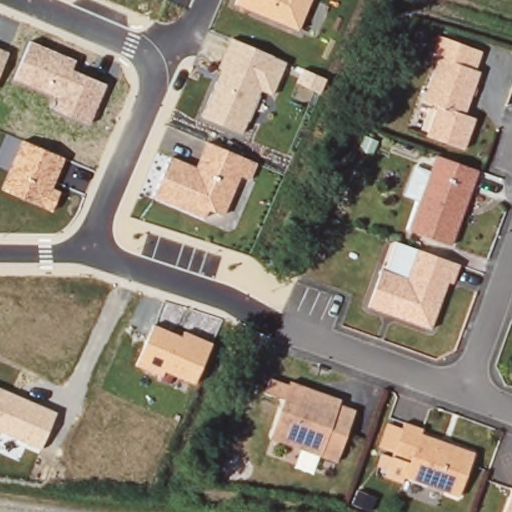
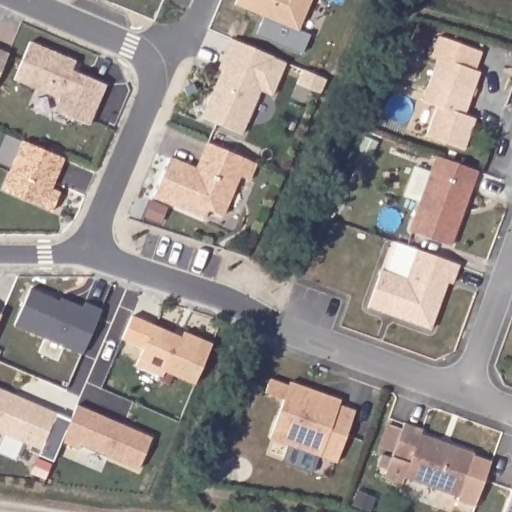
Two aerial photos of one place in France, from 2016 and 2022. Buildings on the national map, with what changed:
unchanged [(237,4),(238,0),(313,0),(300,30),(237,4)]
unchanged [(90,125),(54,109),(59,99),(14,80),(30,40),(75,60),(71,70),(107,85),(90,125)]
unchanged [(232,40),(287,60),(273,96),(260,91),(244,132),(202,117),(232,40)]
unchanged [(438,64),(432,61),(438,41),(482,56),(476,75),(480,77),(465,120),(476,124),(464,155),(427,140),(437,111),(423,106),(438,64)]
unchanged [(8,54),(0,75),(0,50),(8,54)]
unchanged [(22,137),(67,156),(53,188),(60,191),(52,211),(1,189),(22,137)]
unchanged [(170,156),(197,166),(208,142),(256,162),(247,189),(238,186),(227,216),(209,210),(205,219),(153,197),(170,156)]
unchanged [(471,173),(471,174),(471,175),(472,175),(472,176),(473,176),(474,176),(475,175),(476,175),(477,175),(450,251),(409,236),(437,160),(471,173)]
unchanged [(368,311),(382,275),(407,284),(417,255),(459,270),(452,288),(447,286),(431,333),(393,320),(384,317),(368,311)]
new [(15,324),(30,287),(59,300),(61,296),(83,306),(85,301),(102,308),(82,353),(15,324)]
new [(2,312),(0,316),(0,312),(2,312)]
unchanged [(195,384),(164,371),(161,377),(135,365),(153,325),(181,337),(184,330),(212,343),(195,384)]
unchanged [(340,405),(356,410),(337,462),(270,438),(291,381),(307,388),(320,392),(341,400),(340,405)]
unchanged [(41,451),(0,433),(0,387),(57,412),(41,451)]
new [(70,421),(77,403),(154,436),(137,470),(81,445),(80,448),(62,441),(54,461),(39,455),(41,451),(56,415),(70,421)]
unchanged [(423,429),(422,434),(475,453),(459,497),(405,477),(402,483),(385,477),(387,470),(378,466),(382,454),(392,457),(393,452),(379,447),(388,423),(402,428),(405,422),(423,429)]
unchanged [(512,491),(512,512),(504,512),(512,491)]

